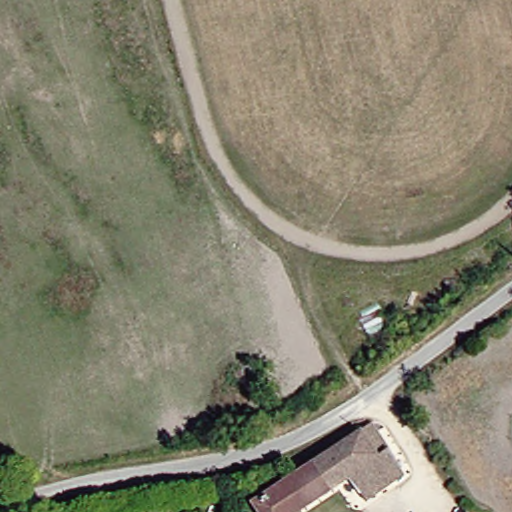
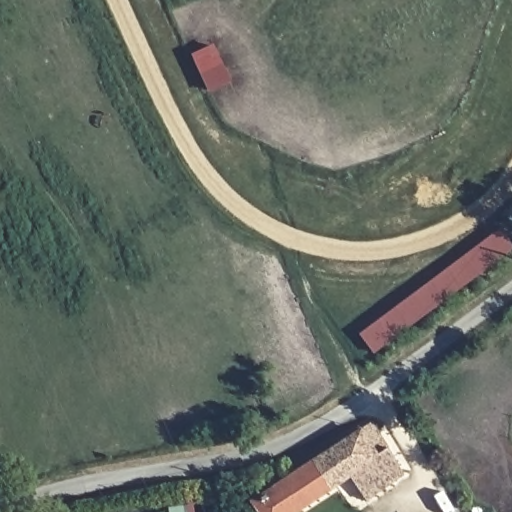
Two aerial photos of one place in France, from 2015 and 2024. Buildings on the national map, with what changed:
new [(512,245),(512,250),(374,355),(360,335),(500,230),(512,245)]
unchanged [(249,503),(366,423),(400,474),(363,503),(346,477),(296,512),(255,512),(249,503)]

